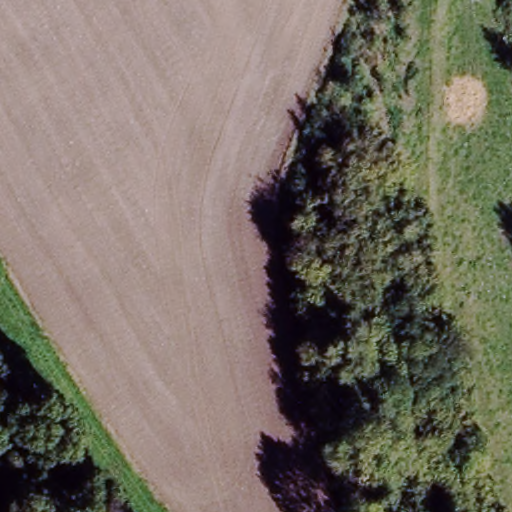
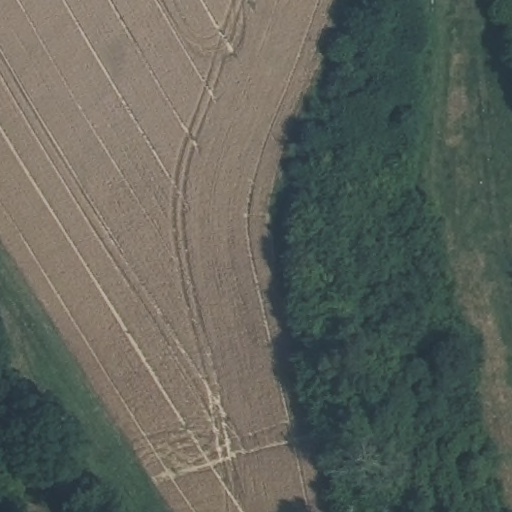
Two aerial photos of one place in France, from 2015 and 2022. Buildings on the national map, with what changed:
[]

